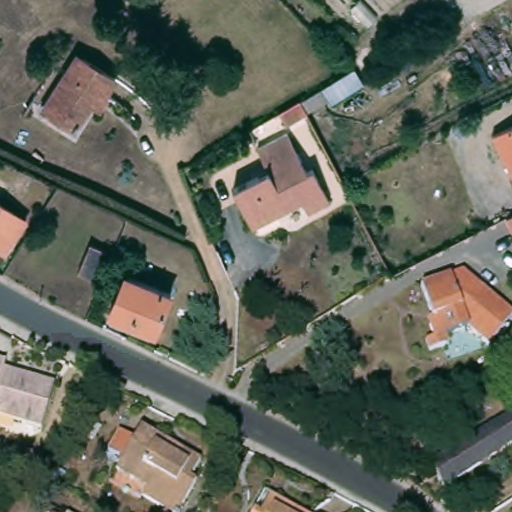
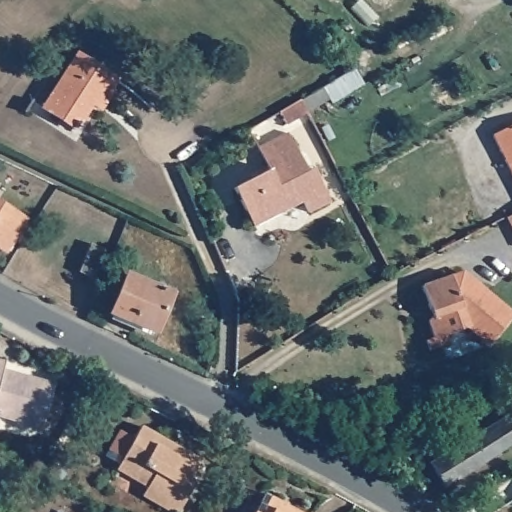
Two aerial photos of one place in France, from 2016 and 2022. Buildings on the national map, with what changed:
unchanged [(420,51),(391,70),(392,72),(374,83),(366,71),(384,60),(381,54),(412,36),(420,51)]
unchanged [(97,117),(85,109),(72,130),(39,110),(73,58),(113,83),(103,98),(107,101),(97,117)]
unchanged [(278,132),(269,117),(290,104),(299,119),(278,132)]
unchanged [(488,135),(512,122),(512,183),(488,135)]
unchanged [(299,175),(304,173),(320,207),(300,218),(294,207),(244,233),(224,194),(259,175),(248,152),(278,137),(299,175)]
unchanged [(1,253),(0,252),(0,205),(21,219),(1,253)]
unchanged [(503,216),(512,211),(512,233),(503,216)]
unchanged [(98,281),(81,274),(94,245),(108,253),(98,281)]
unchanged [(459,271),(463,281),(467,280),(472,275),(512,311),(512,321),(489,347),(468,327),(447,335),(449,342),(431,349),(427,339),(434,335),(428,318),(433,314),(422,284),(459,271)]
unchanged [(164,295),(148,334),(104,314),(119,276),(164,295)]
unchanged [(35,429),(0,418),(0,369),(48,383),(35,429)]
unchanged [(446,489),(431,466),(512,414),(512,447),(446,489)]
unchanged [(141,497),(146,488),(114,470),(118,466),(101,457),(116,431),(132,440),(140,426),(199,460),(192,472),(185,469),(184,474),(195,481),(184,502),(178,512),(169,512),(163,509),(141,497)]
unchanged [(25,469),(33,457),(41,462),(34,474),(25,469)]
unchanged [(286,510),(290,512),(263,512),(269,501),(286,510)]

